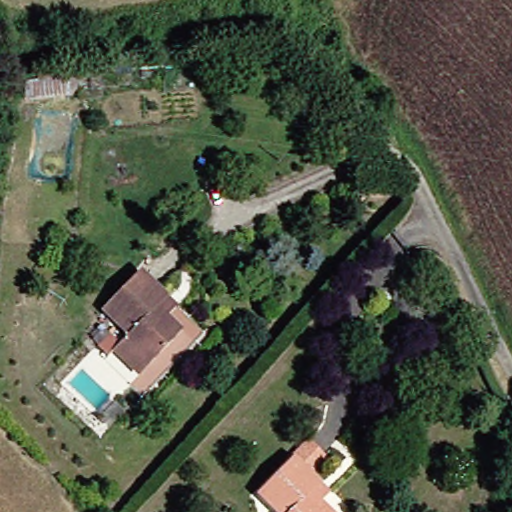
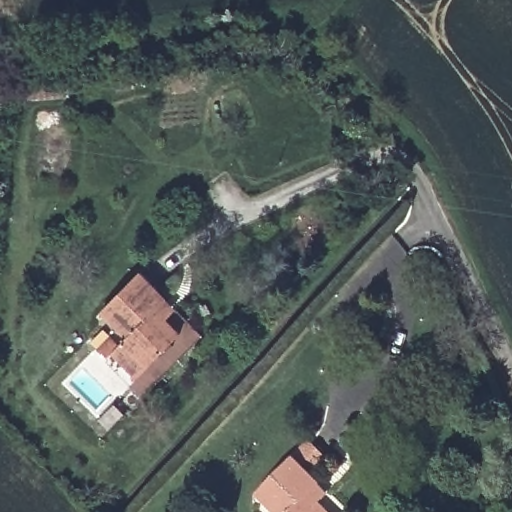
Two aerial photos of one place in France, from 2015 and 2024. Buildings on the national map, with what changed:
unchanged [(100,353),(115,337),(89,313),(129,272),(156,297),(167,307),(156,318),(173,332),(142,363),(127,379),(100,353)]
unchanged [(262,493),(300,456),(327,479),(337,488),(326,501),(339,512),(283,512),(262,493)]

